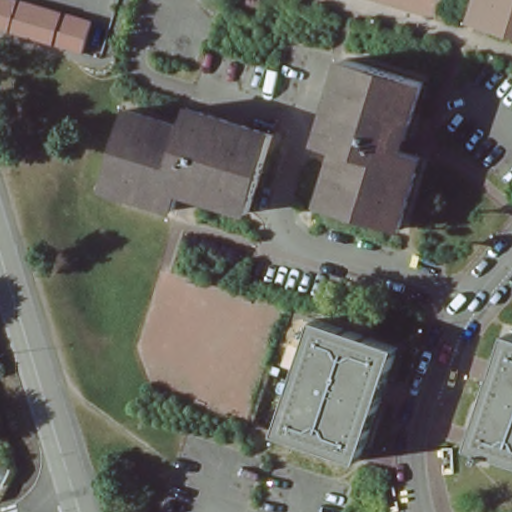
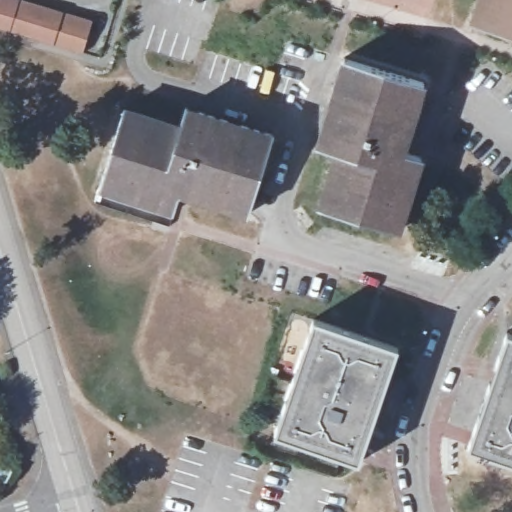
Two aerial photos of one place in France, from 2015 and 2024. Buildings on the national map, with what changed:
unchanged [(93,21),(83,52),(0,28),(0,0),(22,0),(93,21)]
unchanged [(474,0),(512,0),(512,33),(468,19),(474,0)]
unchanged [(407,134),(332,99),(344,61),(421,85),(407,134)]
unchanged [(404,142),(397,140),(393,152),(419,160),(397,232),(320,209),(337,153),(317,146),(332,99),(407,134),(404,142)]
unchanged [(190,193),(192,186),(181,183),(173,207),(100,185),(123,108),(180,125),(186,106),(271,132),(263,159),(248,210),(242,209),(190,193)]
unchanged [(275,435),(314,322),(396,350),(359,463),(275,435)]
unchanged [(507,335),(512,337),(512,463),(469,448),(507,335)]

